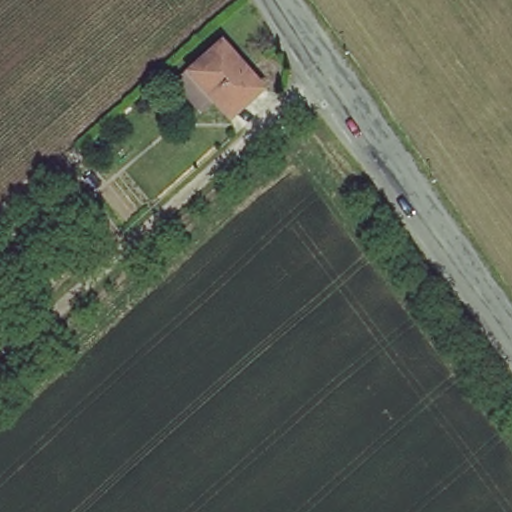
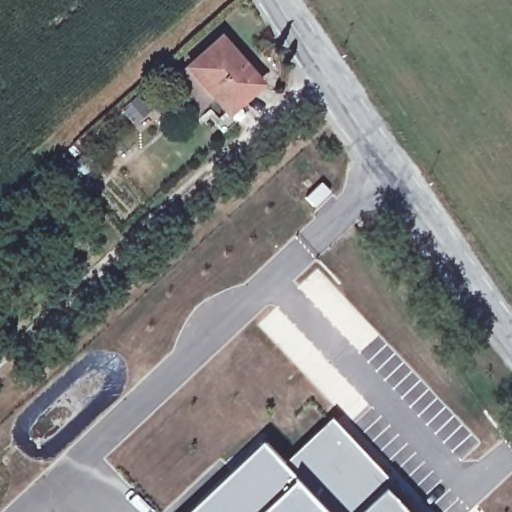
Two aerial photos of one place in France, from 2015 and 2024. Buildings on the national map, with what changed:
unchanged [(218,39),(258,87),(226,116),(211,100),(198,110),(171,80),(218,39)]
new [(333,414),(390,475),(386,481),(354,512),(334,512),(296,473),(284,459),(333,414)]
new [(197,502),(264,437),(284,459),(296,473),(255,512),(185,512),(197,502)]
new [(296,473),(334,512),(255,512),(296,473)]
new [(386,481),(414,512),(354,512),(386,481)]

